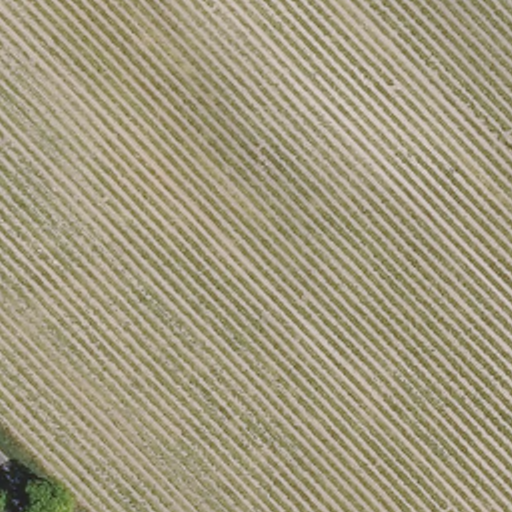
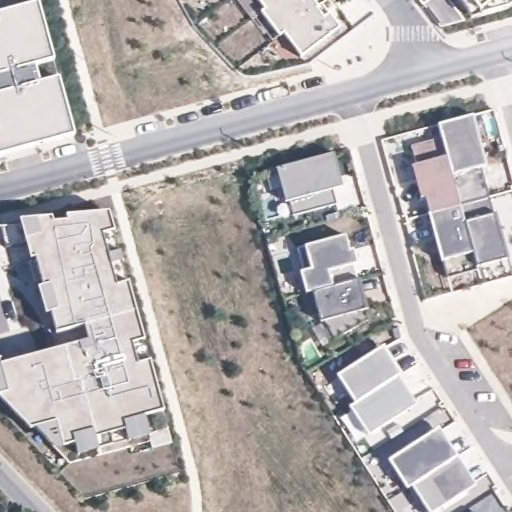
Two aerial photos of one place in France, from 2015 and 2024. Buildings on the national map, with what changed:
new [(329,14),(340,27),(301,56),(282,32),(278,36),(260,11),(263,7),(257,0),(312,0),(325,17),(329,14)]
new [(470,19),(456,0),(512,0),(512,5),(470,19)]
new [(53,60),(0,75),(0,13),(38,2),(53,60)]
new [(0,156),(0,94),(58,78),(74,136),(0,156)]
new [(490,197),(460,205),(442,139),(438,124),(467,116),(482,166),(484,175),(490,197)]
new [(430,213),(425,198),(420,199),(407,148),(412,147),(442,139),(460,205),(430,213)]
new [(323,156),(337,204),(293,216),(280,168),(323,156)]
new [(490,197),(495,214),(497,221),(507,260),(477,268),(460,205),(490,197)]
new [(460,205),(477,268),(447,276),(430,213),(460,205)]
new [(0,225),(104,217),(109,219),(112,223),(172,443),(152,449),(143,417),(123,423),(125,428),(71,442),(70,437),(55,441),(50,424),(33,428),(0,394),(0,366),(0,365),(26,357),(55,349),(54,341),(51,334),(56,333),(50,311),(45,313),(38,287),(43,286),(42,280),(35,282),(29,261),(36,259),(32,245),(5,248),(0,229),(0,225)]
new [(333,339),(323,321),(320,322),(318,315),(312,317),(305,293),(300,273),(303,272),(297,248),(345,235),(357,279),(367,320),(333,339)]
new [(378,348),(415,404),(367,437),(348,407),(354,402),(337,376),(378,348)]
new [(74,470),(33,428),(50,424),(55,441),(70,437),(71,442),(125,428),(123,423),(143,417),(152,449),(74,470)]
new [(437,427),(477,485),(438,512),(424,512),(408,488),(405,490),(387,460),(437,427)]

